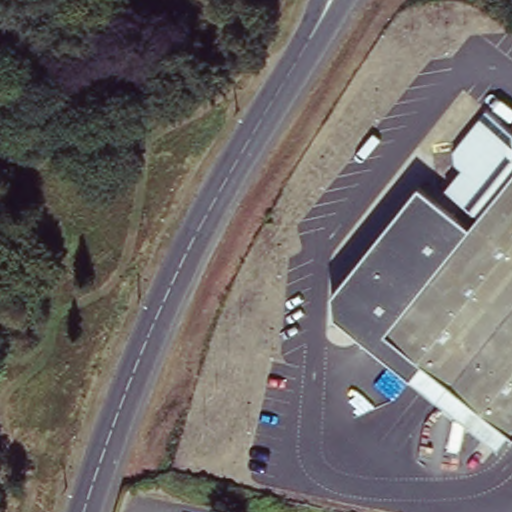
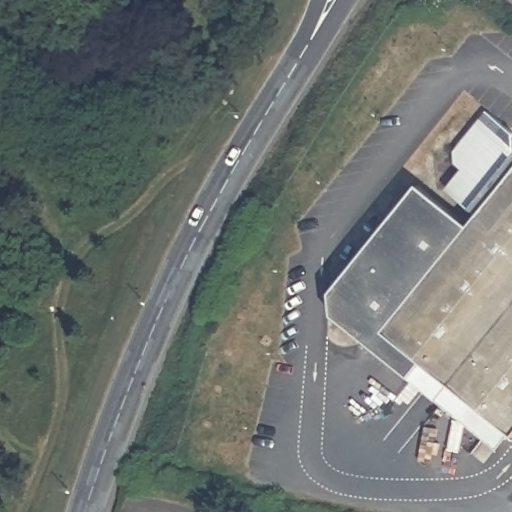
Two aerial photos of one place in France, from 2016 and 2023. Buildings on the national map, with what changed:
unchanged [(385,333),(478,217),(447,190),(462,170),(455,164),(457,150),(488,110),(512,130),(512,437),(385,333)]
unchanged [(385,333),(512,437),(512,440),(503,449),(411,378),(336,316),(333,294),(419,188),(470,227),(385,333)]

